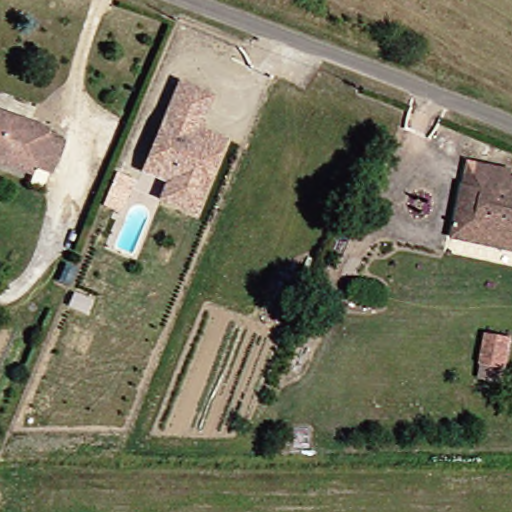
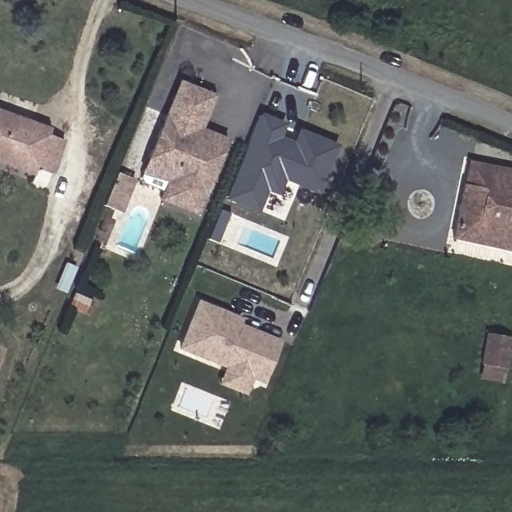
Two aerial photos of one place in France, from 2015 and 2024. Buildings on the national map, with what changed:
unchanged [(165,112),(180,79),(184,81),(214,94),(200,127),(208,130),(226,137),(195,212),(159,197),(166,179),(142,168),(147,155),(165,112)]
unchanged [(0,164),(0,108),(56,130),(54,137),(72,145),(60,177),(41,170),(37,179),(0,164)]
new [(297,129),(338,146),(318,195),(285,181),(280,193),(267,190),(258,212),(225,200),(262,112),(286,121),(282,136),(293,140),(297,129)]
unchanged [(473,159),(512,167),(512,189),(469,180),(473,159)]
new [(120,171),(135,179),(122,212),(105,205),(120,171)]
unchanged [(456,235),(469,180),(512,189),(512,247),(456,235)]
new [(182,346),(201,301),(230,313),(242,318),(240,323),(280,340),(263,381),(252,376),(245,392),(221,382),(228,366),(182,346)]
unchanged [(492,372),(495,362),(487,361),(495,331),(512,335),(512,354),(506,376),(492,372)]

